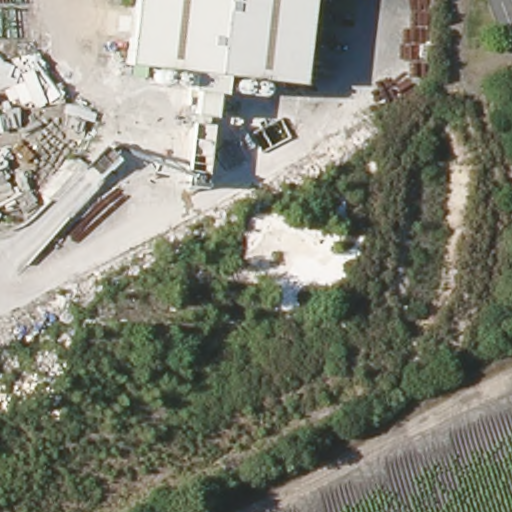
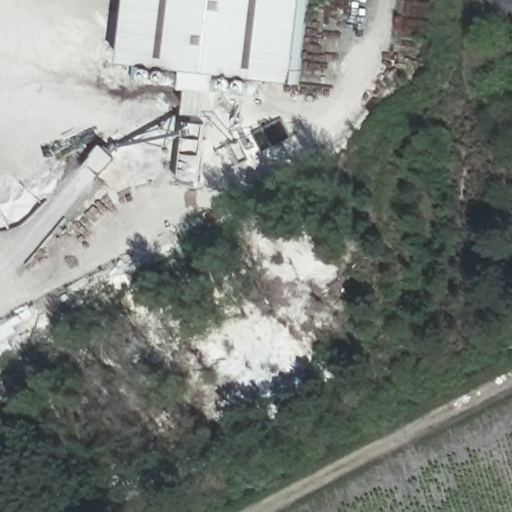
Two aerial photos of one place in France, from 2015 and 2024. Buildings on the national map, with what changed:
unchanged [(310,0),(300,84),(230,77),(223,119),(191,114),(195,94),(190,92),(193,72),(127,63),(134,0),(310,0)]

